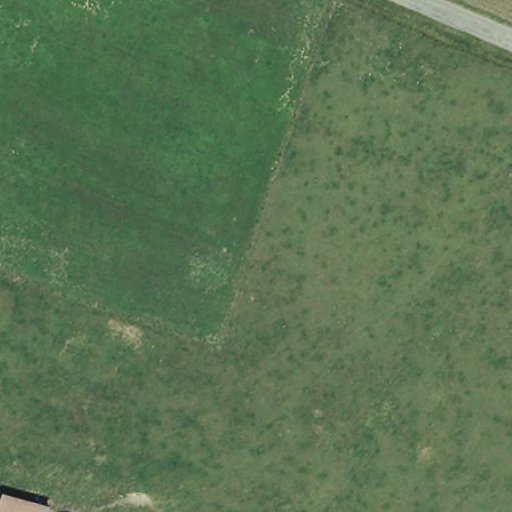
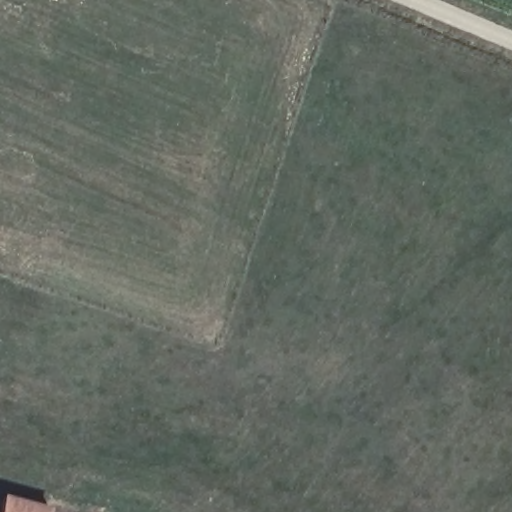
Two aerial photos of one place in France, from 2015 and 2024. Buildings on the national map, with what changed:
unchanged [(7,494),(53,506),(52,512),(2,512),(7,494)]

